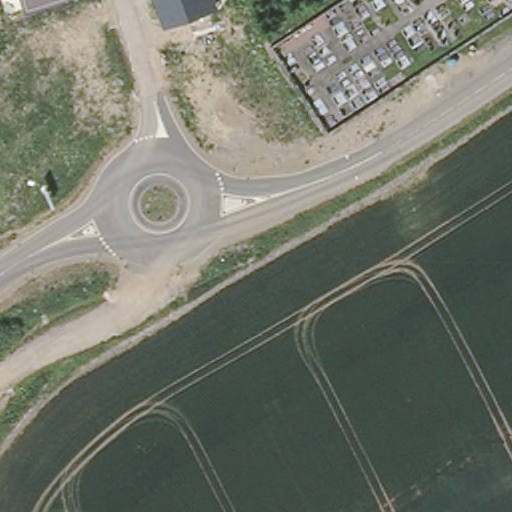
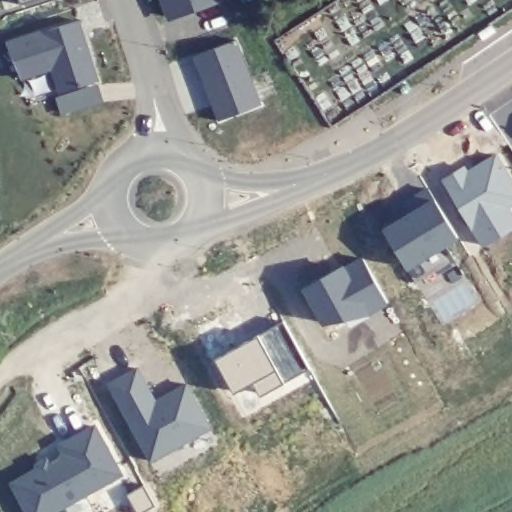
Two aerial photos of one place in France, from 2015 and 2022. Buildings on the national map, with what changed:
unchanged [(22,1),(22,0),(27,0),(22,1)]
unchanged [(167,20),(161,0),(222,0),(167,20)]
unchanged [(82,52),(85,62),(92,83),(55,95),(47,70),(15,80),(0,45),(72,22),(82,52)]
unchanged [(230,42),(255,107),(213,123),(189,58),(230,42)]
new [(464,166),(470,175),(477,171),(475,168),(497,154),(512,180),(512,204),(509,206),(512,212),(512,228),(485,245),(445,179),(464,166)]
new [(410,214),(404,204),(429,189),(459,236),(445,244),(455,258),(417,282),(385,231),(410,214)]
new [(342,268),(344,268),(345,270),(364,259),(387,301),(348,323),(342,312),(326,321),(307,288),(333,274),(342,268)]
new [(246,347),(244,343),(284,321),(311,368),(285,383),(284,380),(260,393),(253,380),(234,391),(218,363),(246,347)]
new [(138,368),(156,402),(187,385),(212,428),(152,461),(110,385),(138,368)]
new [(60,446),(95,427),(122,475),(55,512),(29,512),(13,484),(66,455),(60,446)]

